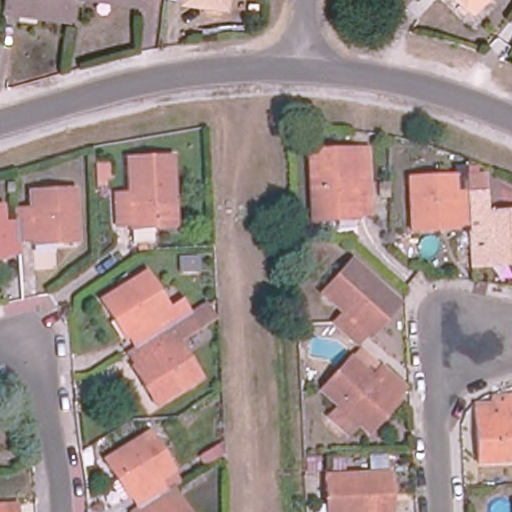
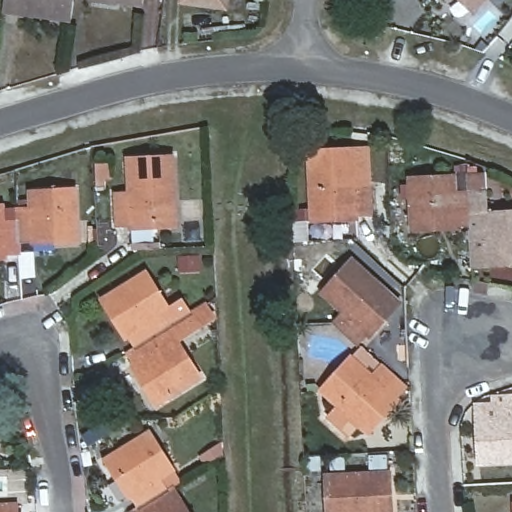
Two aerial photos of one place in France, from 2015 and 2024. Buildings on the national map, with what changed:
unchanged [(2,6),(3,0),(73,0),(70,16),(2,6)]
unchanged [(132,0),(142,0),(142,1),(132,0)]
unchanged [(355,9),(350,0),(366,0),(362,4),(355,9)]
unchanged [(461,0),(485,0),(473,12),(461,0)]
unchanged [(357,215),(357,219),(311,222),(308,152),(353,149),(367,149),(369,181),(370,214),(357,215)]
unchanged [(176,232),(130,234),(130,230),(116,230),(115,199),(128,199),(127,162),(172,159),(176,232)]
unchanged [(111,182),(106,182),(106,188),(96,188),(95,163),(110,163),(111,182)]
unchanged [(494,185),(480,181),(483,173),(496,177),(494,185)]
unchanged [(438,230),(415,231),(413,179),(460,177),(460,194),(473,193),(474,225),(459,225),(460,229),(438,230)]
unchanged [(14,193),(7,193),(7,183),(14,183),(14,193)]
unchanged [(38,235),(23,236),(22,217),(21,204),(35,204),(34,187),(80,184),(82,238),(60,239),(38,239),(38,235)]
unchanged [(389,197),(380,197),(380,184),(389,184),(389,197)]
unchanged [(489,192),(490,214),(512,213),(512,264),(491,265),(491,263),(476,263),(474,225),(473,193),(489,192)]
unchanged [(0,201),(8,201),(9,218),(22,217),(23,236),(23,249),(8,249),(9,254),(0,254),(0,201)]
unchanged [(366,333),(356,344),(333,323),(342,313),(321,293),(352,259),(399,303),(384,319),(369,335),(366,333)]
unchanged [(169,310),(182,302),(190,314),(161,332),(136,348),(129,337),(125,339),(101,300),(145,273),(169,310)]
unchanged [(135,366),(127,354),(136,348),(161,332),(190,314),(205,304),(213,317),(176,339),(200,378),(155,406),(143,387),(131,369),(135,366)]
unchanged [(383,417),(368,434),(358,424),(348,436),(328,417),(337,407),(320,391),(360,348),(405,388),(395,399),(398,401),(383,417)]
unchanged [(478,469),(475,409),(493,409),(492,402),(512,401),(512,468),(478,469)]
unchanged [(0,427),(0,413),(6,412),(9,424),(0,427)]
unchanged [(132,497),(129,499),(104,459),(148,432),(180,483),(172,488),(139,508),(132,497)]
unchanged [(392,463),(374,463),(374,451),(392,451),(392,463)]
unchanged [(348,465),(336,466),(335,458),(348,457),(348,465)]
unchanged [(330,471),(394,468),(396,512),(332,512),(330,471)]
unchanged [(188,512),(133,512),(139,508),(172,488),(188,512)]
unchanged [(0,510),(21,509),(22,512),(0,512),(0,510)]

